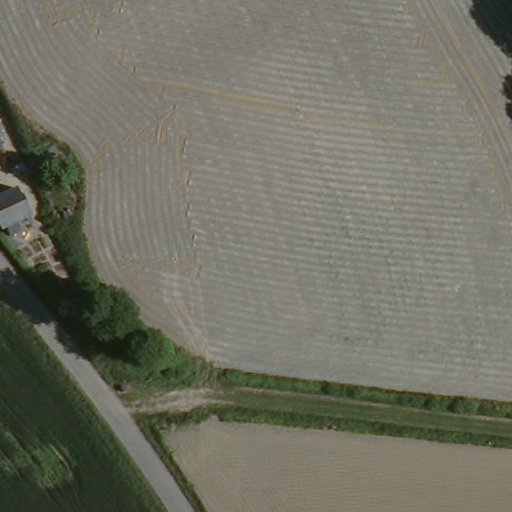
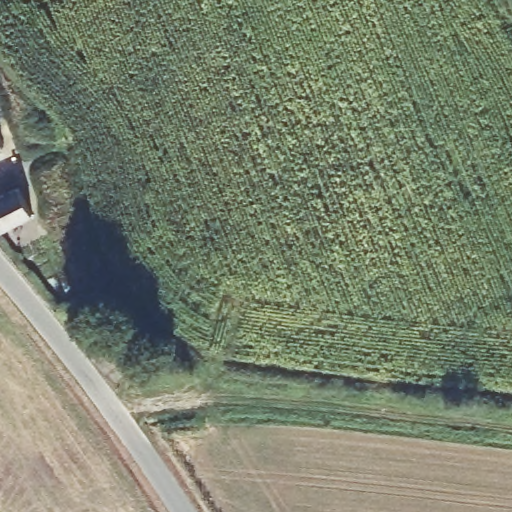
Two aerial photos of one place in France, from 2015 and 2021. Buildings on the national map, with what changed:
unchanged [(1,143),(0,144),(0,139),(1,143)]
unchanged [(7,191),(11,193),(25,214),(23,216),(7,225),(0,229),(0,196),(7,191)]

